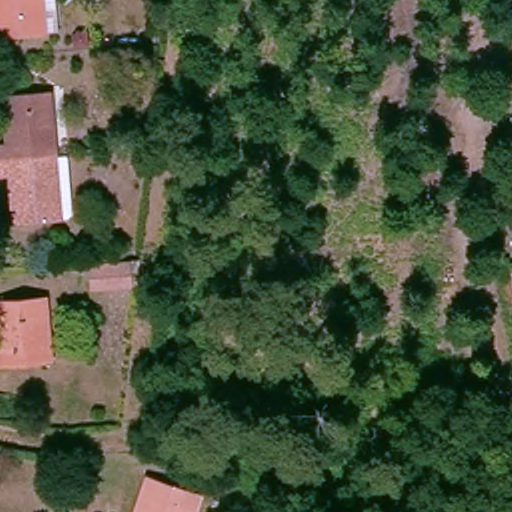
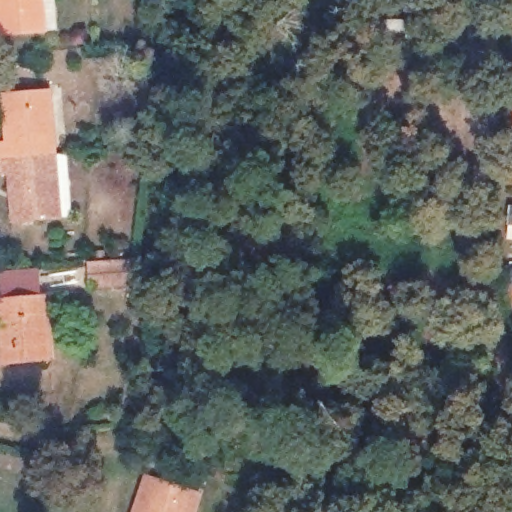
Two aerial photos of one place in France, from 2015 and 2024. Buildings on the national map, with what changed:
unchanged [(44,29),(0,32),(0,0),(41,0),(42,3),(57,2),(60,27),(44,29)]
unchanged [(0,95),(52,92),(57,152),(0,156),(0,143),(2,142),(0,95)]
unchanged [(62,216),(10,220),(7,175),(0,175),(0,156),(57,152),(62,216)]
unchanged [(114,283),(111,263),(150,260),(147,281),(114,283)]
unchanged [(49,362),(0,366),(0,345),(0,299),(42,297),(49,362)]
unchanged [(193,501),(189,512),(132,512),(146,480),(193,501)]

